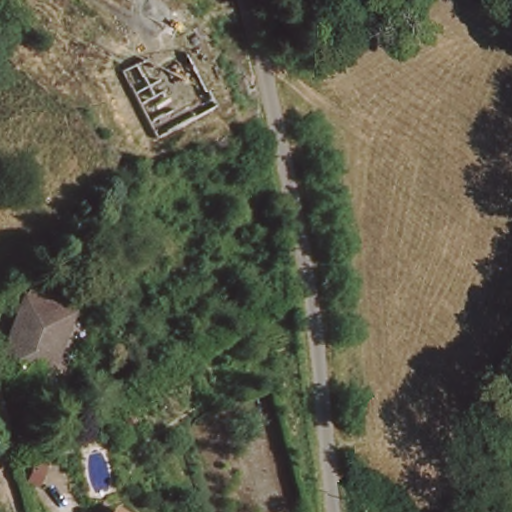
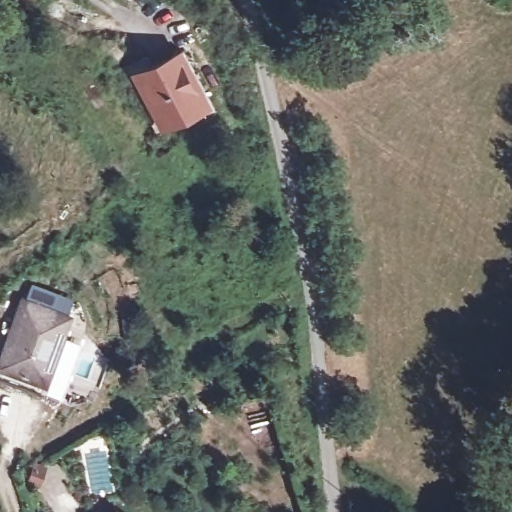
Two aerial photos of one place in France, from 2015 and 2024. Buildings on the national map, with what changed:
new [(162,132),(130,74),(182,47),(212,105),(162,132)]
unchanged [(75,305),(51,374),(5,359),(28,290),(75,305)]
unchanged [(117,512),(102,512),(104,503),(117,512)]

